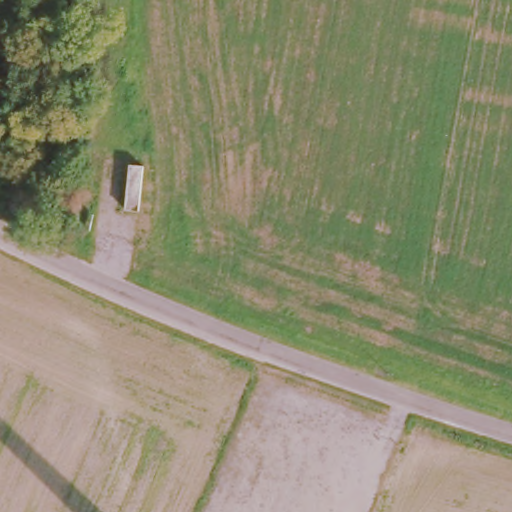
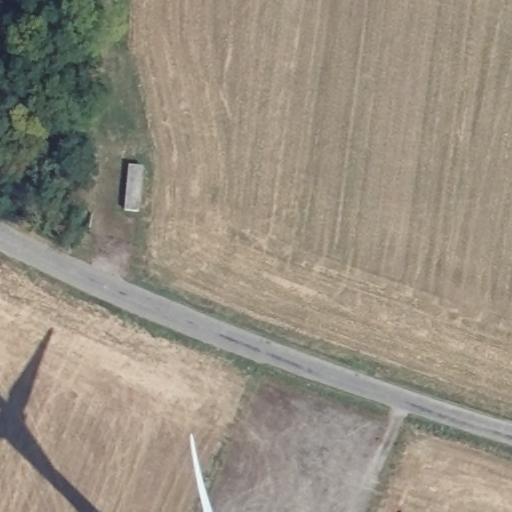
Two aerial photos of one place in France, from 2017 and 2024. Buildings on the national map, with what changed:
unchanged [(143,167),(139,211),(125,210),(130,165),(143,167)]

